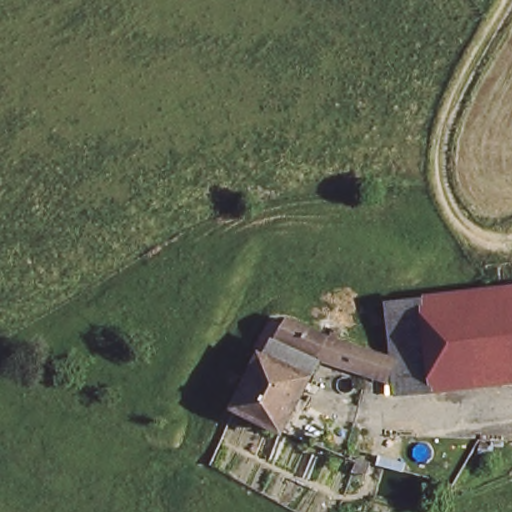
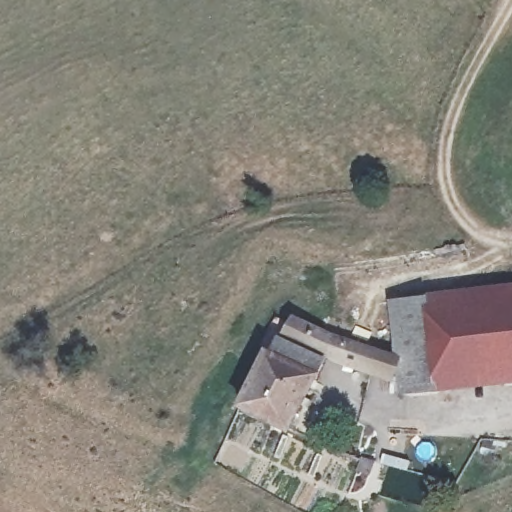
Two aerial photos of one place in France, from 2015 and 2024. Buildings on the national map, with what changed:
unchanged [(402,393),(399,383),(327,363),(292,431),(234,409),(263,343),(272,346),(285,311),(393,353),(389,299),(512,286),(512,382),(402,393)]

